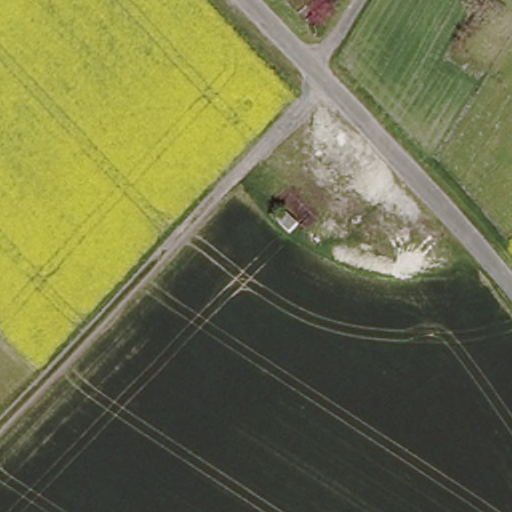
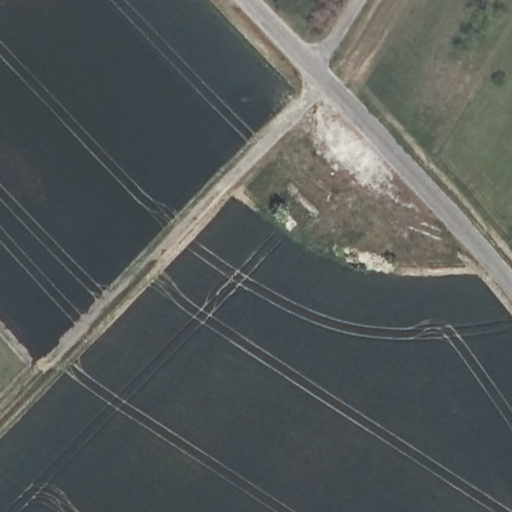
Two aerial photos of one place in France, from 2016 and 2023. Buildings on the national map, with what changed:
unchanged [(303,228),(291,237),(277,228),(287,217),(303,228)]

